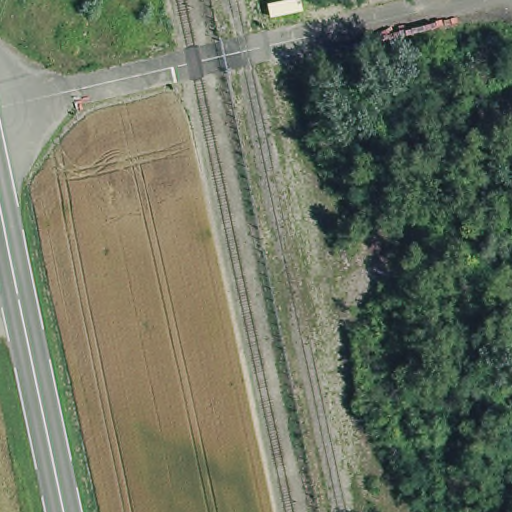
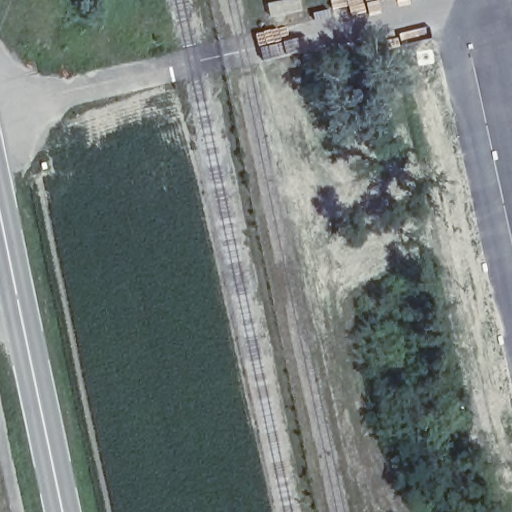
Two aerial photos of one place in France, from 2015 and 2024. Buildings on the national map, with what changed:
[]

